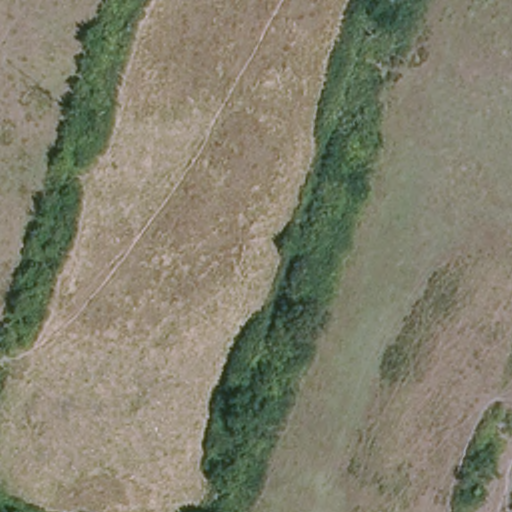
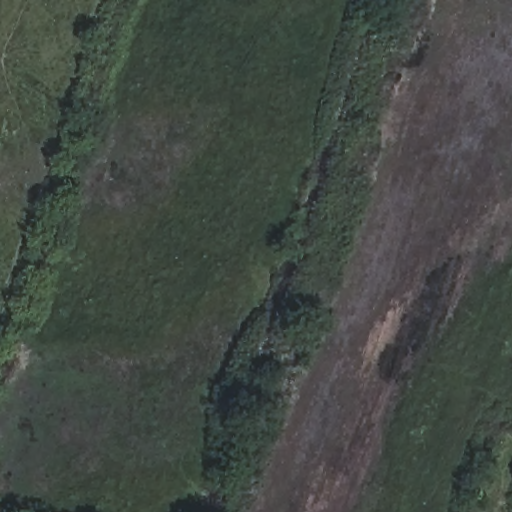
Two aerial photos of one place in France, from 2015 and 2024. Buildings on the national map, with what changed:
[]

